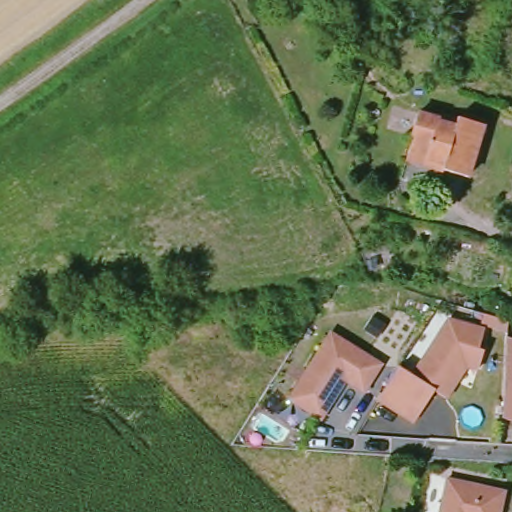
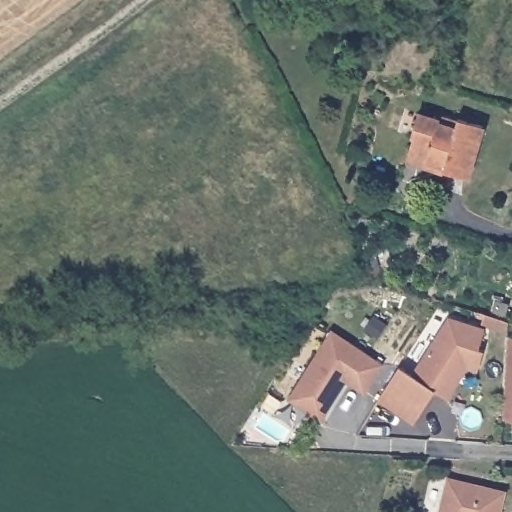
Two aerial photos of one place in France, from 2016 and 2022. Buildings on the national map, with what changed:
unchanged [(410,108),(435,116),(435,121),(450,124),(454,115),(479,122),(466,177),(436,168),(434,162),(399,154),(410,108)]
unchanged [(438,397),(434,395),(414,426),(378,401),(394,377),(399,370),(413,379),(439,341),(450,324),(457,325),(486,336),(479,355),(484,357),(478,375),(446,403),(438,397)]
unchanged [(383,366),(364,394),(346,381),(321,418),(294,399),(291,397),(336,333),(339,335),(383,366)]
unchanged [(504,422),(508,340),(512,342),(512,424),(504,422)]
unchanged [(502,489),(497,512),(435,512),(444,475),(502,489)]

